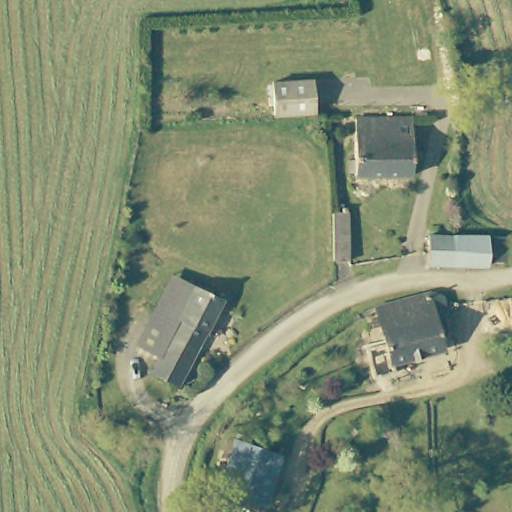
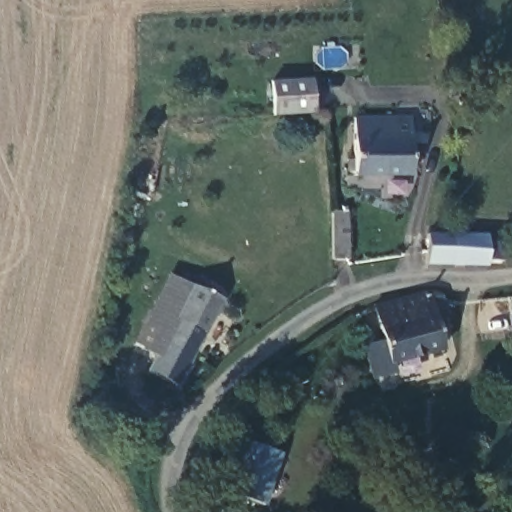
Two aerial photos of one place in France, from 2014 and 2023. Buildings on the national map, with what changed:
unchanged [(314,116),(275,116),(275,84),(314,81),(314,116)]
unchanged [(357,173),(355,171),(351,172),(352,160),(358,160),(358,120),(414,119),(412,177),(356,176),(357,173)]
unchanged [(350,211),(349,260),(334,260),(333,210),(350,211)]
unchanged [(429,263),(430,235),(454,236),(490,238),(511,240),(510,259),(506,261),(490,261),(490,265),(429,263)]
unchanged [(136,346),(173,274),(194,285),(156,357),(136,346)]
unchanged [(222,300),(179,386),(148,373),(156,357),(194,285),(222,300)]
unchanged [(444,347),(391,361),(377,304),(430,292),(444,347)]
unchanged [(238,433),(286,447),(269,497),(221,481),(238,433)]

